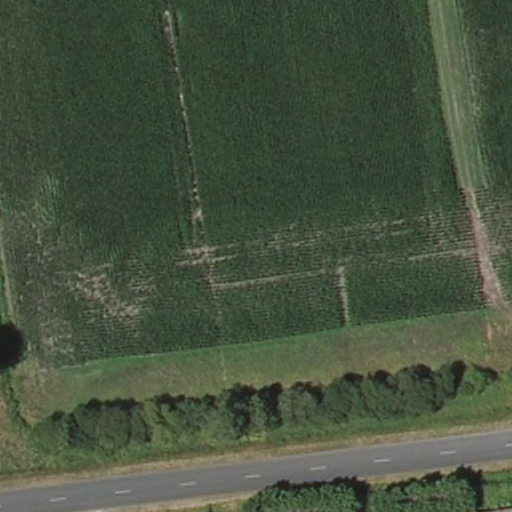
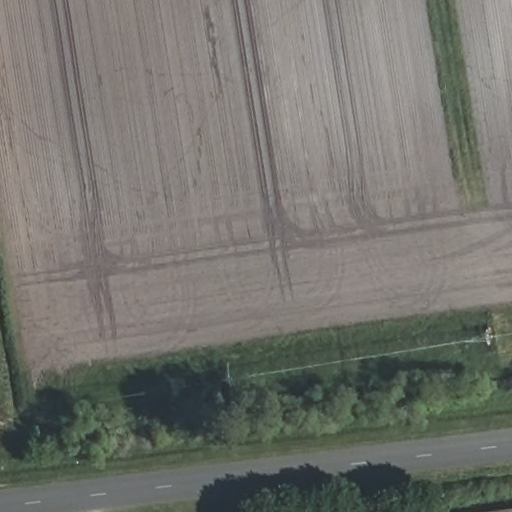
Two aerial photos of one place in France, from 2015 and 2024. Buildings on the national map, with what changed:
unchanged [(512,507),(512,512),(486,512),(512,507)]

